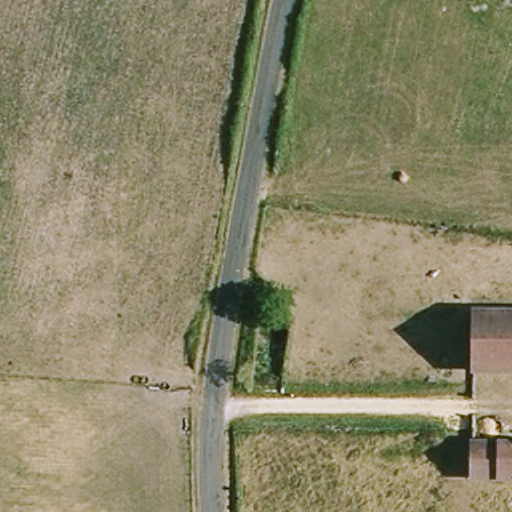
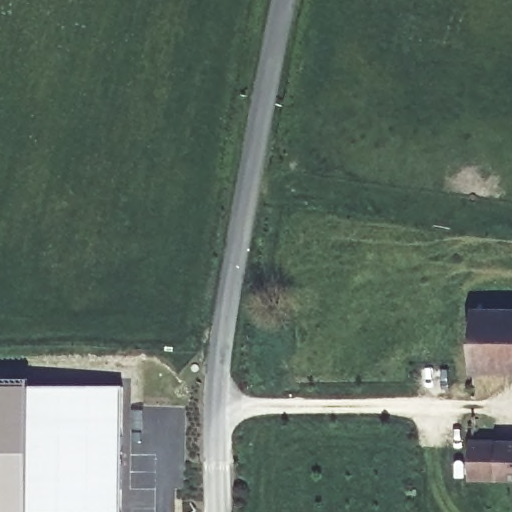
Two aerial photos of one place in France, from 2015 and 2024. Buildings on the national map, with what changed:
unchanged [(480,376),(481,311),(512,311),(512,376),(480,376)]
new [(0,384),(30,384),(29,512),(0,512),(0,384)]
new [(30,384),(122,385),(122,512),(29,512),(30,384)]
unchanged [(472,481),(474,443),(512,443),(512,481),(472,481)]

